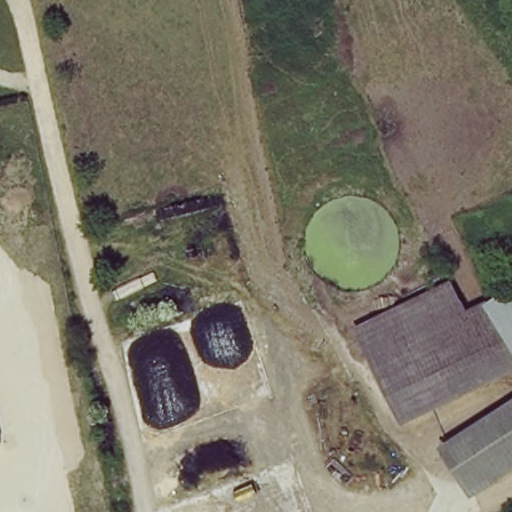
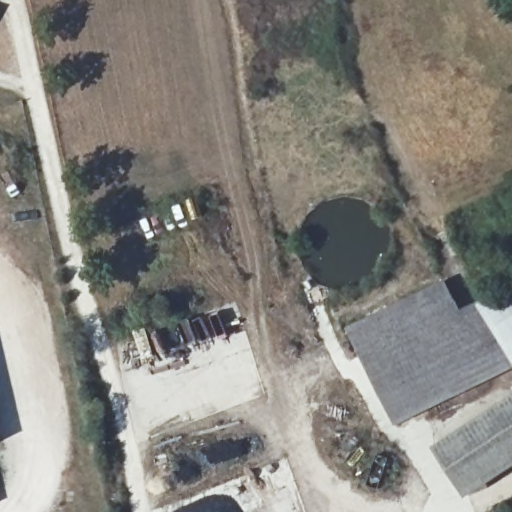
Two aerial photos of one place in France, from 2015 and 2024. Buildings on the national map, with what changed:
unchanged [(349,327),(441,281),(458,315),(366,360),(349,327)]
unchanged [(509,290),(508,288),(512,286),(512,295),(509,290)]
unchanged [(512,295),(512,365),(499,371),(465,311),(509,290),(512,295)]
unchanged [(397,422),(366,360),(458,315),(465,311),(499,371),(397,422)]
unchanged [(471,500),(436,446),(512,399),(512,474),(471,500)]

